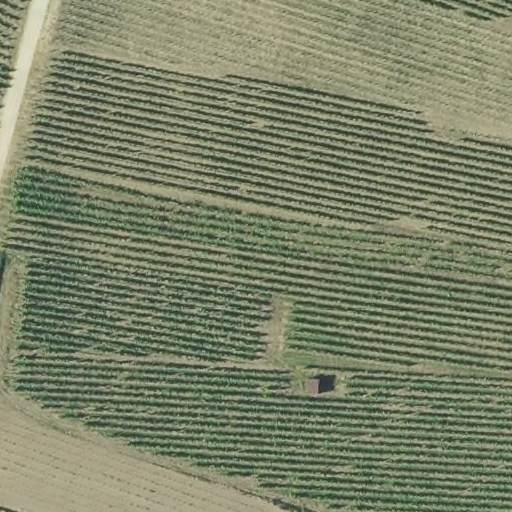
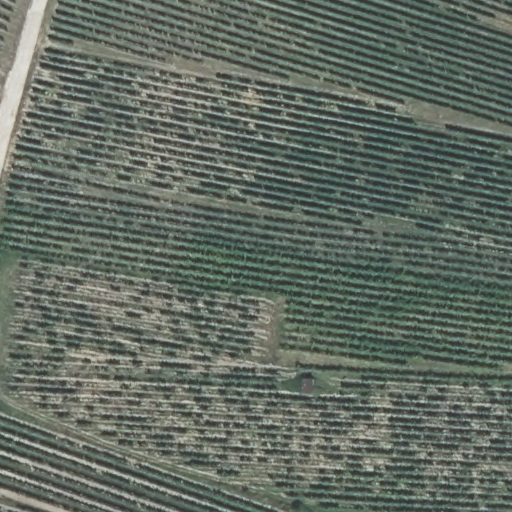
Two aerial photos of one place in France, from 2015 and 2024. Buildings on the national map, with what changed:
unchanged [(322,376),(324,401),(297,402),(298,376),(322,376)]

